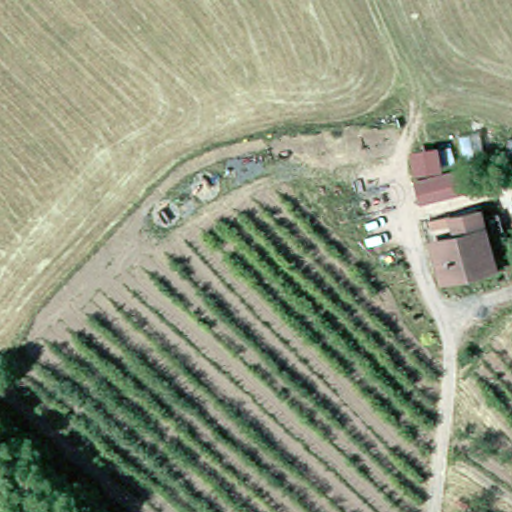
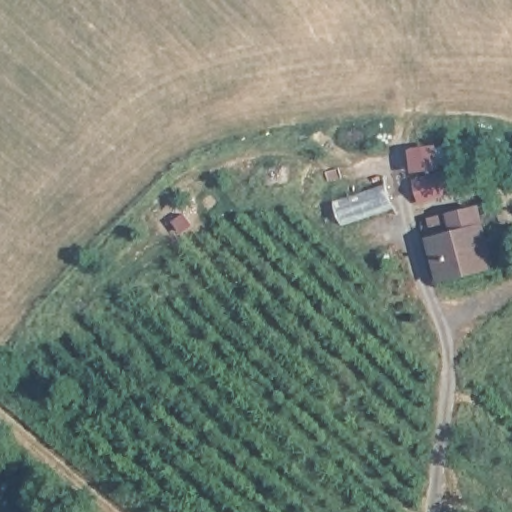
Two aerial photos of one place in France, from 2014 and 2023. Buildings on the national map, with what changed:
unchanged [(415,155),(465,141),(469,161),(419,175),(415,155)]
unchanged [(438,283),(429,247),(426,232),(449,225),(475,218),(492,213),(496,230),(479,235),(487,269),(438,283)]

